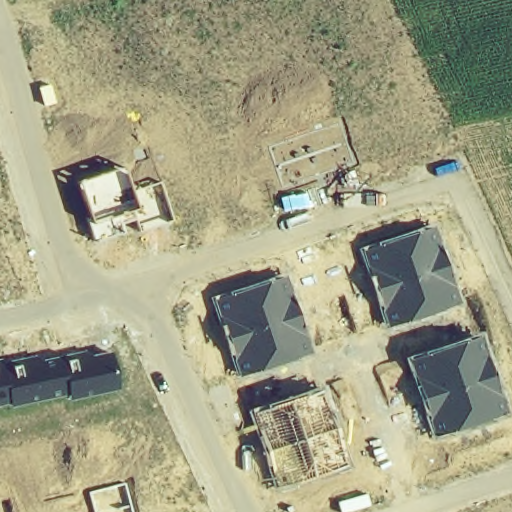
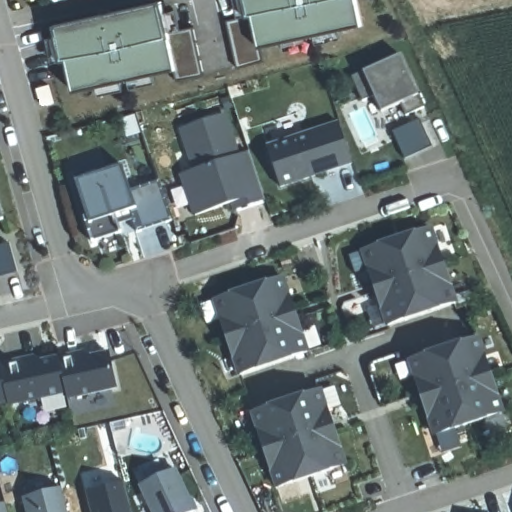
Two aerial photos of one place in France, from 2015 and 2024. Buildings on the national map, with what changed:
new [(162,0),(169,31),(194,26),(205,75),(177,81),(175,69),(74,91),(67,60),(62,61),(54,24),(162,0)]
new [(362,25),(262,47),(265,61),(238,68),(227,20),(248,15),(245,0),(357,0),(362,25)]
new [(400,54),(425,108),(407,116),(401,104),(382,112),(375,96),(363,101),(352,77),(400,54)]
new [(49,84),(54,102),(43,105),(38,87),(49,84)]
new [(242,154),(249,151),(265,200),(234,211),(232,203),(194,217),(179,174),(194,170),(179,129),(227,113),(242,154)]
new [(420,119),(433,146),(405,159),(393,132),(420,119)]
unchanged [(340,122),(353,163),(281,187),(267,146),(340,122)]
unchanged [(90,219),(78,182),(122,167),(132,192),(160,183),(171,221),(140,229),(137,219),(121,224),(123,231),(94,240),(90,219)]
new [(0,221),(0,205),(4,219),(0,221)]
unchanged [(358,249),(428,224),(457,303),(385,330),(358,249)]
new [(17,271),(0,276),(0,245),(9,242),(17,271)]
unchanged [(209,298),(284,274),(309,354),(236,378),(209,298)]
unchanged [(405,358),(480,333),(506,414),(429,440),(405,358)]
unchanged [(27,362),(88,350),(90,358),(112,354),(120,389),(68,400),(67,395),(7,408),(7,403),(0,405),(0,362),(25,357),(27,362)]
unchanged [(247,411),(320,386),(347,466),(275,490),(247,411)]
unchanged [(195,511),(193,512),(154,512),(141,485),(175,469),(195,511)]
unchanged [(132,512),(93,512),(88,492),(125,482),(132,512)]
unchanged [(68,512),(28,512),(25,498),(62,488),(68,512)]
unchanged [(7,512),(0,512),(0,505),(5,503),(7,512)]

